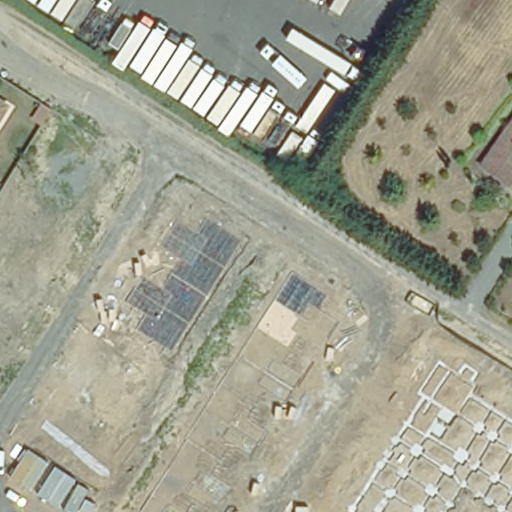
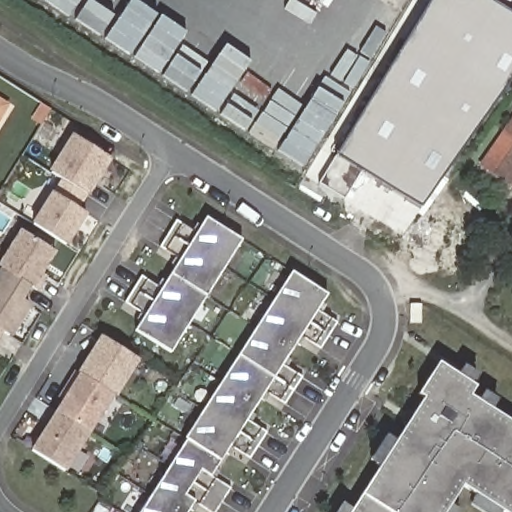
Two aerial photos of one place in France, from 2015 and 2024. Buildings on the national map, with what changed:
new [(430,0),(491,0),(495,3),(512,13),(512,79),(421,207),(384,185),(335,155),(430,0)]
unchanged [(7,97),(14,101),(0,125),(0,93),(7,97)]
unchanged [(49,109),(40,124),(29,117),(38,102),(49,109)]
unchanged [(512,127),(512,190),(481,169),(512,127)]
new [(88,196),(85,194),(59,178),(49,172),(72,134),(111,159),(88,196)]
new [(68,246),(32,222),(59,178),(85,194),(77,207),(87,213),(68,246)]
new [(242,240),(170,352),(136,330),(146,315),(125,303),(141,276),(163,287),(180,258),(160,247),(176,221),(196,232),(205,217),(242,240)]
new [(34,288),(31,286),(0,268),(0,260),(19,229),(56,252),(34,288)]
new [(11,338),(2,333),(0,331),(0,268),(31,286),(23,301),(31,305),(11,338)]
new [(318,309),(337,322),(320,349),(302,336),(284,363),(302,376),(284,403),(266,390),(248,418),(266,430),(249,458),(231,447),(213,475),(231,487),(216,512),(207,512),(194,502),(188,512),(140,512),(292,271),(327,295),(318,309)]
new [(0,337),(0,331),(2,333),(0,337)]
new [(117,396),(114,394),(78,372),(100,335),(139,360),(117,396)]
new [(416,393),(438,360),(478,386),(471,395),(512,421),(512,512),(505,512),(464,486),(447,512),(351,512),(424,398),(416,393)]
new [(78,372),(114,394),(91,432),(54,409),(78,372)]
new [(30,448),(54,409),(91,432),(67,471),(30,448)]

